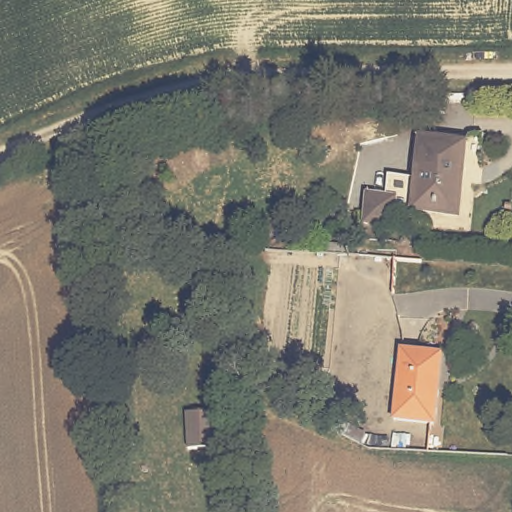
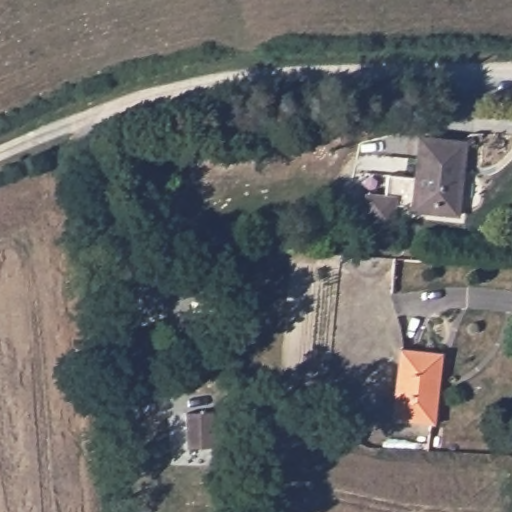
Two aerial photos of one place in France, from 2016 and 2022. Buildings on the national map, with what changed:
unchanged [(415,210),(417,180),(420,143),(465,146),(459,218),(414,214),(415,210)]
unchanged [(397,210),(396,230),(365,227),(368,197),(386,199),(387,178),(417,180),(415,210),(397,210)]
unchanged [(439,358),(433,425),(392,422),(397,355),(439,358)]
unchanged [(219,412),(220,450),(183,451),(183,414),(219,412)]

